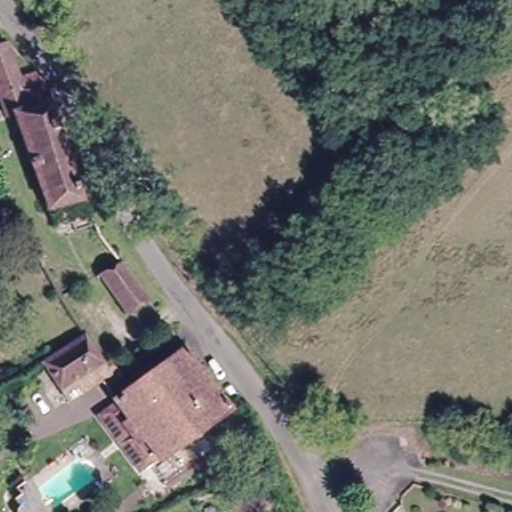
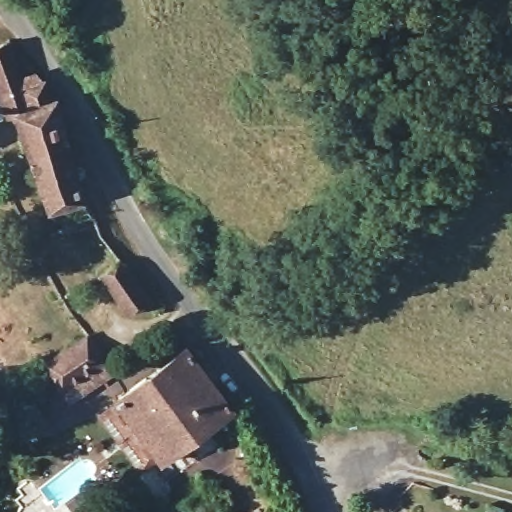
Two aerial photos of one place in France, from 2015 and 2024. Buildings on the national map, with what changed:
unchanged [(23,75),(44,68),(53,82),(88,201),(57,212),(0,54),(0,42),(7,40),(23,75)]
unchanged [(0,150),(0,141),(4,149),(0,150)]
unchanged [(133,309),(104,267),(120,256),(149,298),(133,309)]
unchanged [(61,379),(46,353),(89,330),(105,354),(111,366),(101,373),(68,391),(61,379)]
unchanged [(97,408),(136,377),(182,345),(231,411),(175,450),(188,471),(152,492),(140,474),(118,436),(97,408)]

